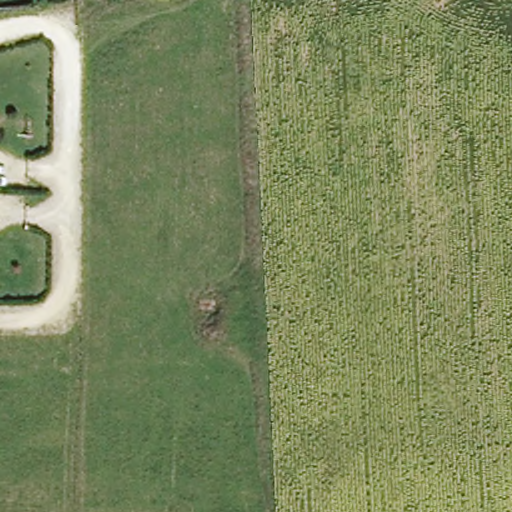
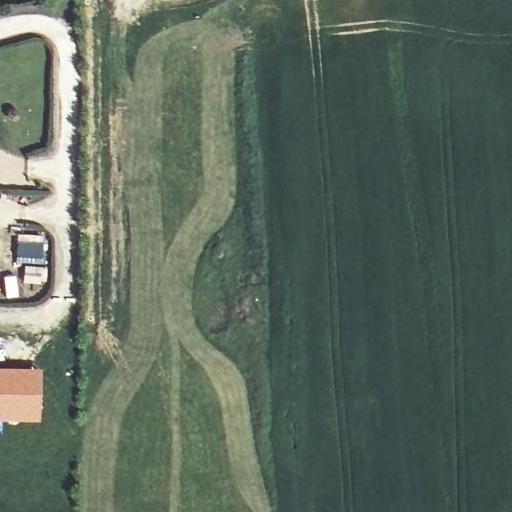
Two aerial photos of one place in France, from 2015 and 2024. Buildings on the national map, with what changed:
new [(42,370),(40,424),(3,423),(2,433),(0,433),(0,369),(42,370)]

